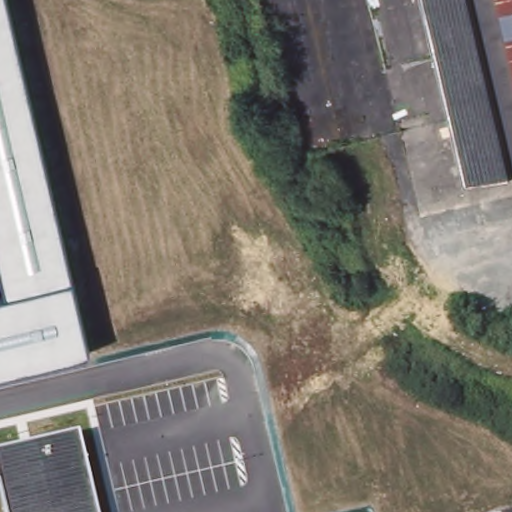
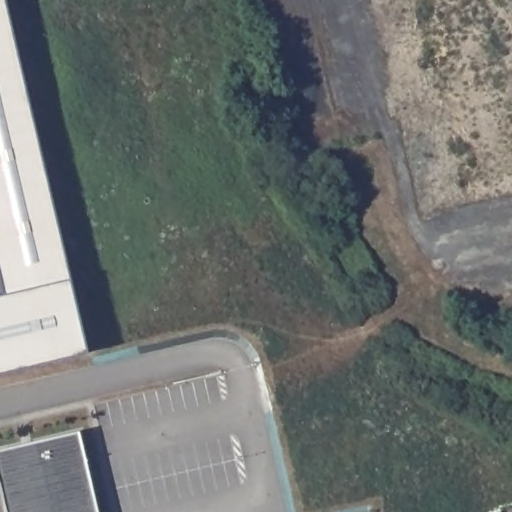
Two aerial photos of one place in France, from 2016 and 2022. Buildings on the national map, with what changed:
unchanged [(0,372),(0,297),(7,295),(0,264),(0,0),(7,0),(89,350),(0,372)]
demolished [(512,169),(463,180),(421,0),(512,0),(512,169)]
demolished [(110,355),(122,413),(4,441),(0,424),(0,381),(110,355)]
unchanged [(9,512),(0,471),(0,452),(84,430),(103,512),(9,512)]

